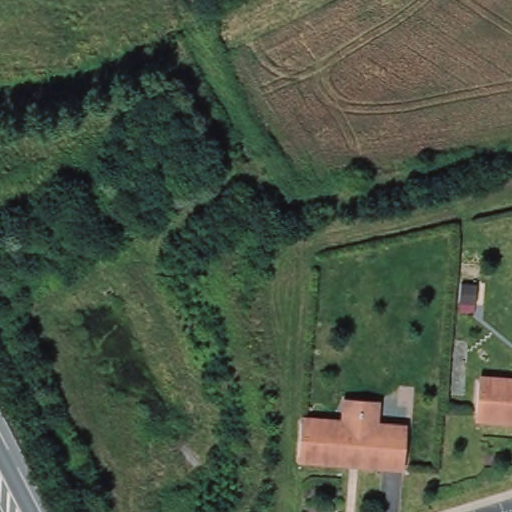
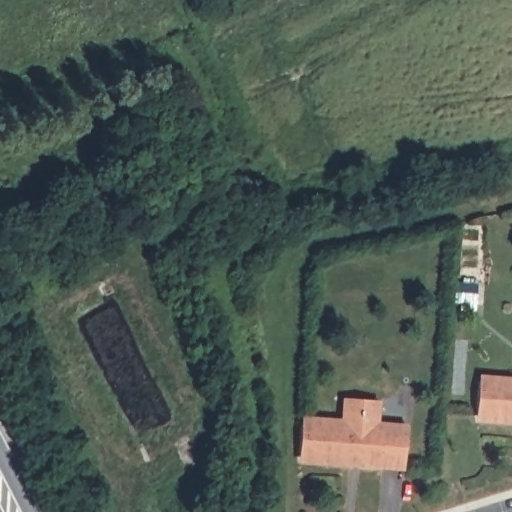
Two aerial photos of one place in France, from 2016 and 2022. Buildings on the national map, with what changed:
unchanged [(485,375),(512,377),(512,425),(480,422),(485,375)]
unchanged [(300,467),(303,423),(340,426),(343,396),(374,398),(372,428),(401,431),(397,474),(357,471),(339,470),(300,467)]

